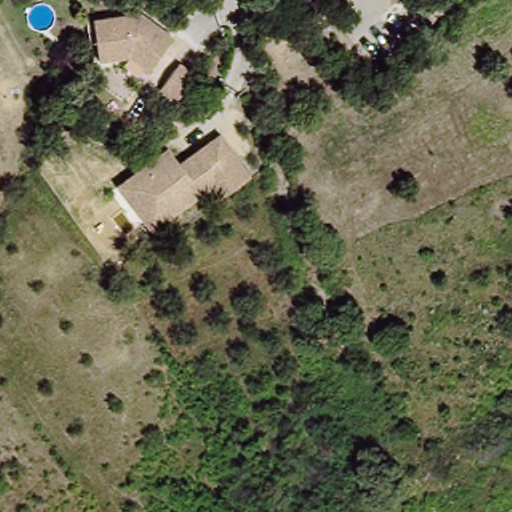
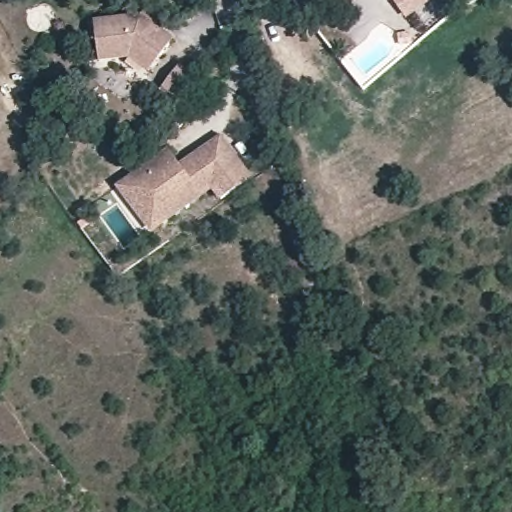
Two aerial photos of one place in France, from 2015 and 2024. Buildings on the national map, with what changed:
unchanged [(142,20),(175,48),(148,78),(129,61),(96,63),(95,23),(95,22),(142,20)]
unchanged [(182,121),(167,109),(180,94),(165,81),(183,57),(200,71),(182,92),(196,103),(182,121)]
unchanged [(138,199),(135,195),(135,175),(170,148),(182,164),(207,147),(224,135),(252,175),(222,197),(213,183),(170,216),(157,225),(152,217),(138,199)]

